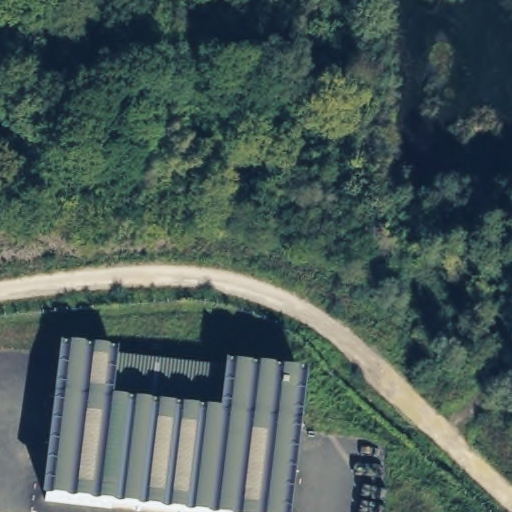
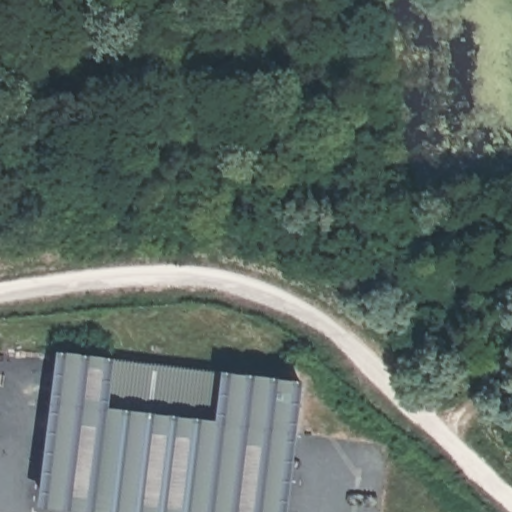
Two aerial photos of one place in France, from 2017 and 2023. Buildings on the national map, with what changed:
unchanged [(62,345),(303,375),(286,512),(128,512),(35,501),(62,345)]

